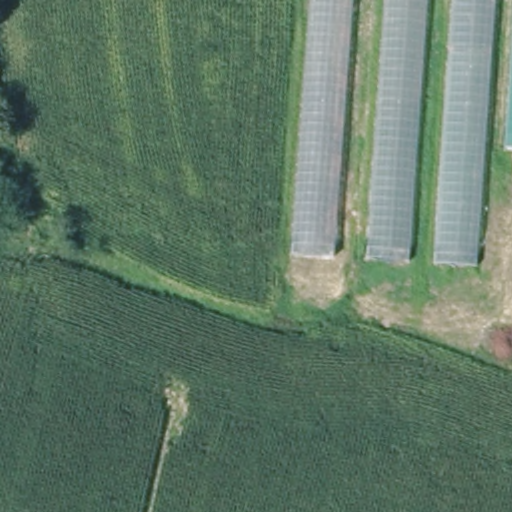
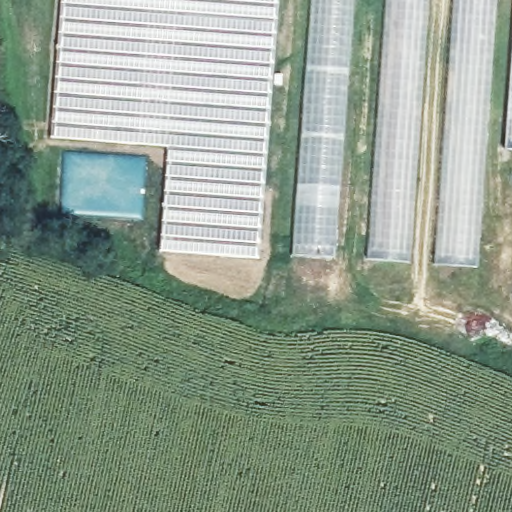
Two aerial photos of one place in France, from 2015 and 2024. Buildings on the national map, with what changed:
new [(258,261),(160,251),(169,147),(51,139),(61,0),(276,0),(258,261)]
unchanged [(307,251),(298,250),(302,192),(313,0),(349,0),(334,252),(307,251)]
unchanged [(416,258),(369,255),(384,0),(428,0),(416,258)]
unchanged [(479,268),(438,263),(452,0),(495,0),(479,268)]
unchanged [(512,14),(512,147),(503,146),(512,14)]

